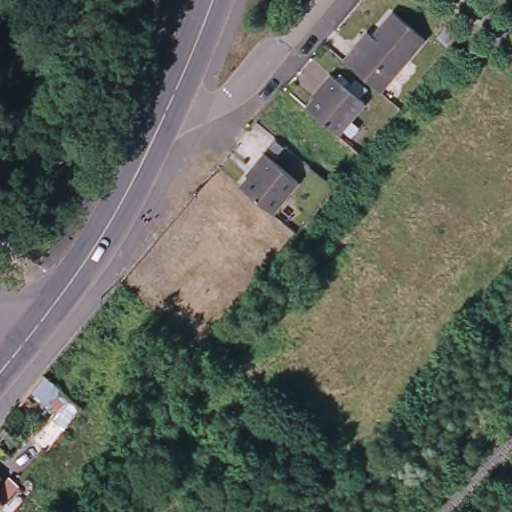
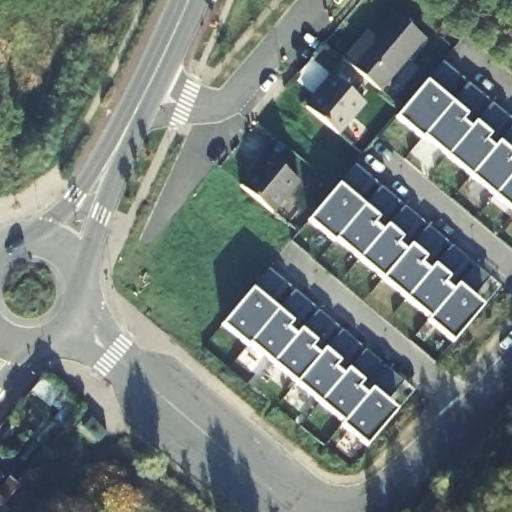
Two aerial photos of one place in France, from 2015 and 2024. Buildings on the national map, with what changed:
unchanged [(354,47),(359,52),(394,12),(426,39),(380,92),(346,62),(344,60),(354,47)]
new [(512,121),(512,208),(425,135),(421,138),(395,116),(427,81),(442,62),(512,121)]
unchanged [(365,104),(337,135),(307,107),(322,89),(320,87),(331,75),(365,104)]
unchanged [(271,214),(240,187),(257,168),(254,166),(265,154),(298,184),(271,214)]
new [(489,276),(472,295),(482,304),(452,340),(427,320),(431,316),(337,237),(334,240),(309,218),(338,182),(354,165),(489,276)]
demolished [(181,217),(207,239),(194,255),(212,270),(170,319),(125,282),(181,217)]
demolished [(225,288),(241,268),(243,266),(259,279),(257,282),(250,289),(242,298),(240,301),(225,288)]
new [(385,398),(397,410),(368,445),(342,424),(346,421),(250,341),(247,343),(223,323),(252,287),(268,268),(403,382),(385,398)]
unchanged [(15,485),(0,503),(0,484),(5,478),(15,485)]

